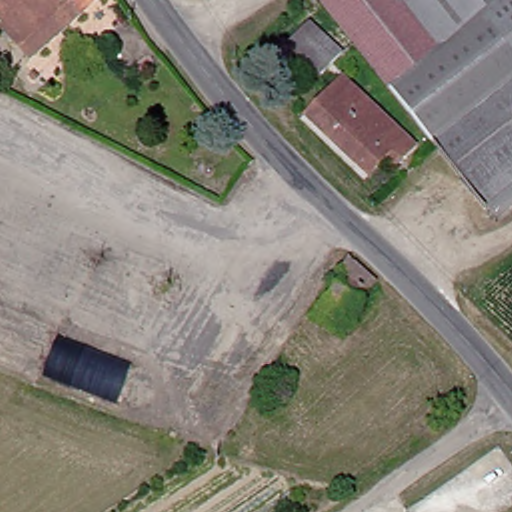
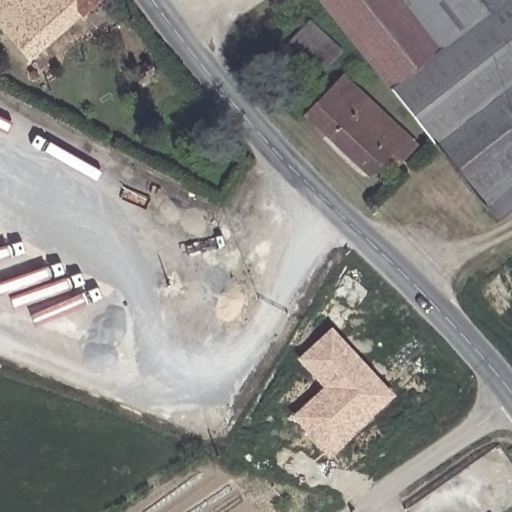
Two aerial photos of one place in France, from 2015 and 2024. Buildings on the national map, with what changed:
unchanged [(0,21),(0,0),(96,0),(30,56),(0,21)]
unchanged [(322,0),(331,0),(401,85),(501,8),(512,20),(512,106),(451,153),(322,0)]
unchanged [(401,85),(331,0),(512,0),(512,20),(501,8),(401,85)]
unchanged [(286,42),(307,18),(340,46),(320,70),(286,42)]
unchanged [(368,161),(311,110),(343,74),(413,136),(401,149),(399,147),(378,170),(368,161)]
unchanged [(451,153),(512,106),(512,187),(492,203),(451,153)]
unchanged [(512,210),(504,217),(492,203),(512,187),(512,210)]
new [(291,416),(323,388),(297,359),(332,328),(395,396),(328,458),(291,416)]

